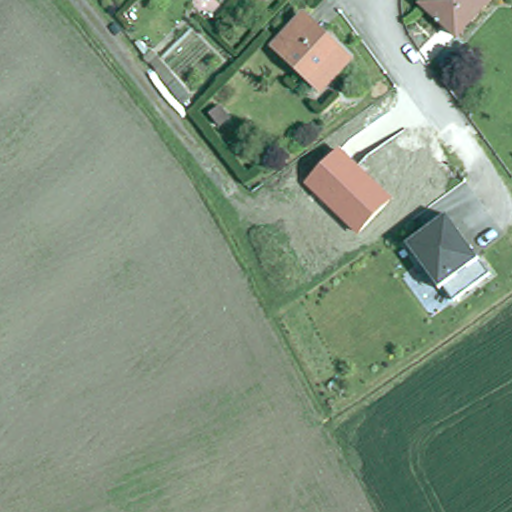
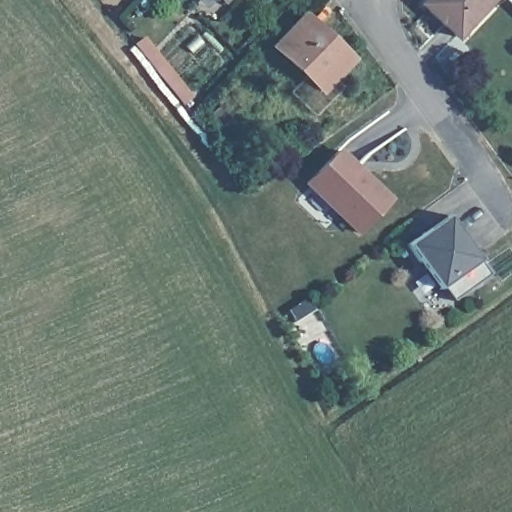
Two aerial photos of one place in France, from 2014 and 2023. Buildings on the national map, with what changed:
unchanged [(457,36),(427,7),(423,4),(426,0),(491,0),(457,36)]
unchanged [(351,60),(321,90),(276,47),(304,16),(351,60)]
unchanged [(393,199),(357,235),(304,184),(339,148),(393,199)]
unchanged [(422,265),(409,247),(424,235),(449,217),(451,220),(493,276),(456,303),(446,289),(442,292),(422,265)]

